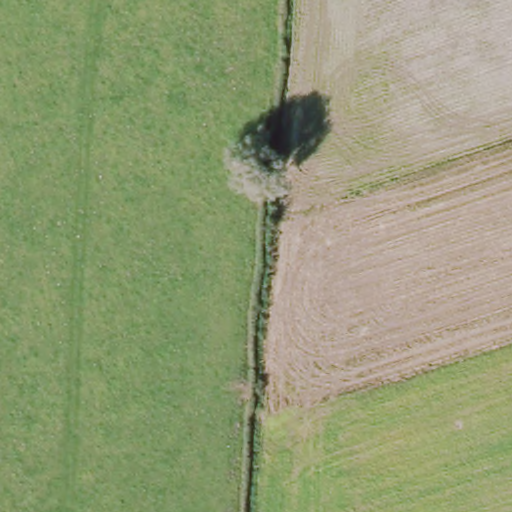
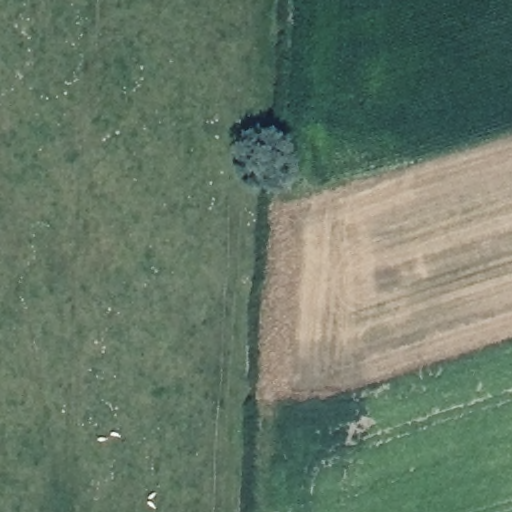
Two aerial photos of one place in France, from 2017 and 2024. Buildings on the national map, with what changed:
[]

